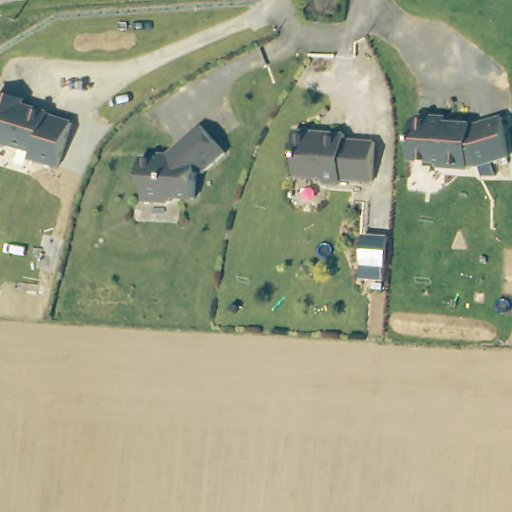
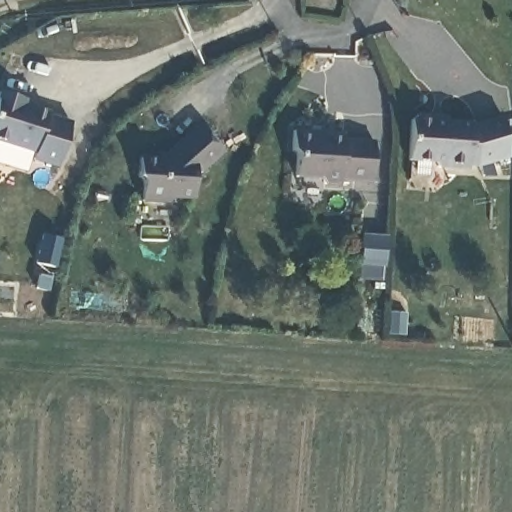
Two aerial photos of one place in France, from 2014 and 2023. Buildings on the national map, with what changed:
unchanged [(16,100),(14,106),(42,115),(41,116),(64,124),(51,168),(26,160),(28,154),(0,145),(0,95),(16,100)]
unchanged [(468,173),(468,176),(438,175),(434,169),(408,167),(411,127),(417,122),(436,124),(435,129),(471,132),(471,134),(474,134),(500,120),(507,160),(477,174),(468,173)]
unchanged [(218,154),(195,174),(189,173),(187,200),(167,199),(162,203),(136,201),(137,183),(132,178),(133,159),(154,160),(193,126),(218,154)]
unchanged [(344,181),(344,186),(328,185),(323,180),(299,178),(300,156),(295,151),(297,132),(315,133),(314,139),(325,140),(326,134),(347,135),(346,141),(378,143),(375,183),(344,181)]
unchanged [(359,280),(362,234),(387,235),(384,281),(359,280)]

